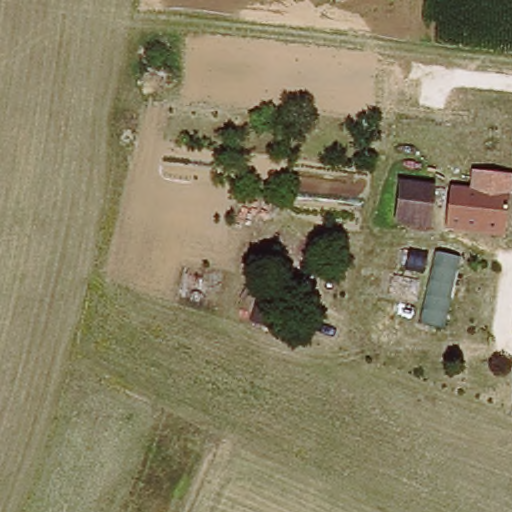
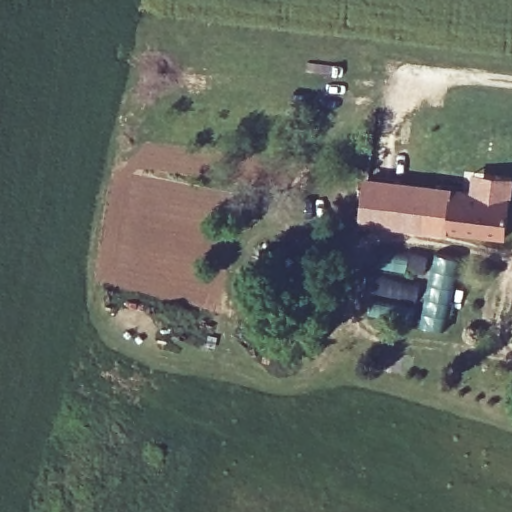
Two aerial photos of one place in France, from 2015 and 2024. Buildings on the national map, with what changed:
unchanged [(512,192),(507,237),(447,230),(452,187),(470,189),(472,174),(512,178),(512,192)]
new [(364,179),(452,187),(447,230),(445,234),(358,223),(364,179)]
unchanged [(443,327),(420,322),(436,253),(458,259),(443,327)]

